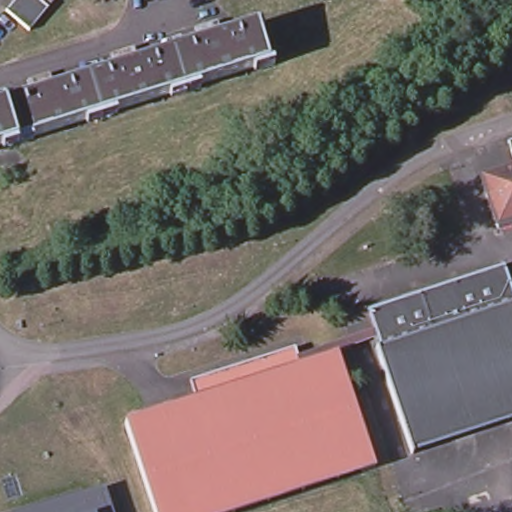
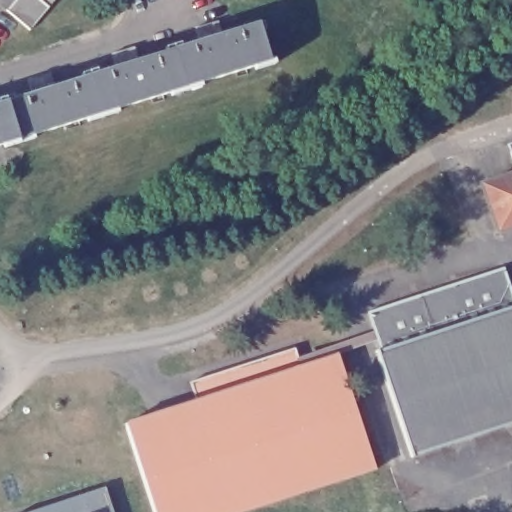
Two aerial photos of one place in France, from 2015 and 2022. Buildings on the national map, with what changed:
unchanged [(39,16),(30,27),(7,8),(14,0),(53,0),(49,5),(39,16)]
unchanged [(253,26),(264,64),(179,90),(167,52),(253,26)]
unchanged [(167,52),(179,90),(98,114),(86,77),(167,52)]
unchanged [(86,77),(98,114),(14,140),(2,103),(86,77)]
unchanged [(14,140),(0,144),(0,103),(2,103),(14,140)]
unchanged [(482,182),(512,172),(512,221),(497,227),(482,182)]
unchanged [(368,349),(373,347),(361,313),(496,267),(508,303),(512,301),(512,415),(406,450),(408,454),(403,456),(368,349)]
unchanged [(239,512),(153,512),(123,423),(194,400),(188,382),(292,347),(299,365),(335,353),(372,468),(239,512)]
unchanged [(102,489),(110,512),(31,512),(102,489)]

